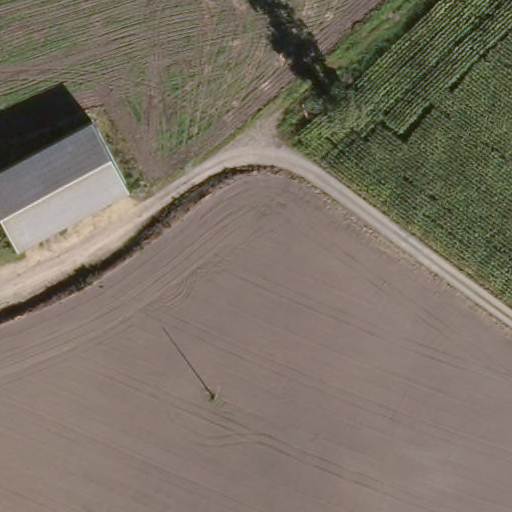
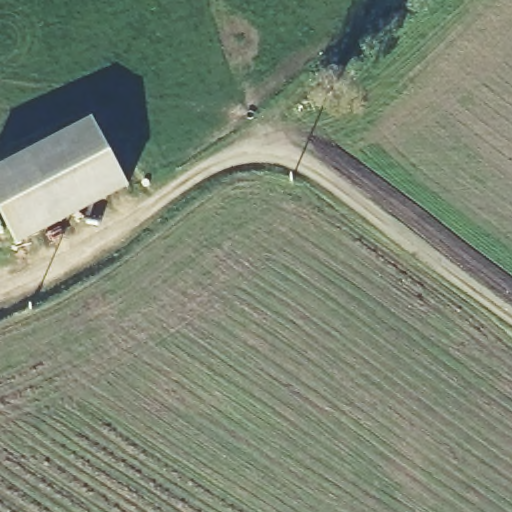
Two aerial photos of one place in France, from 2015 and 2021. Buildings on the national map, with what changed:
unchanged [(96,119),(128,189),(13,242),(0,214),(0,164),(96,119)]

